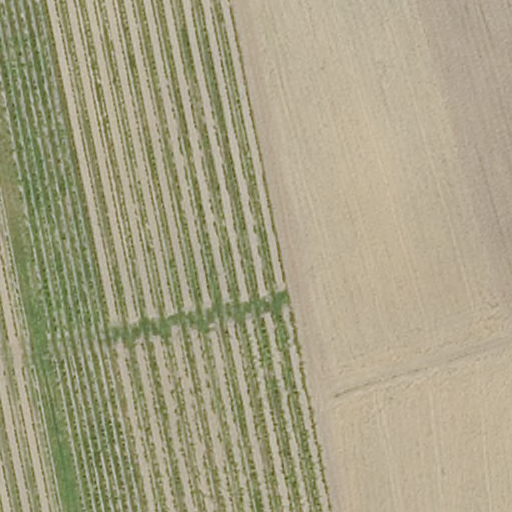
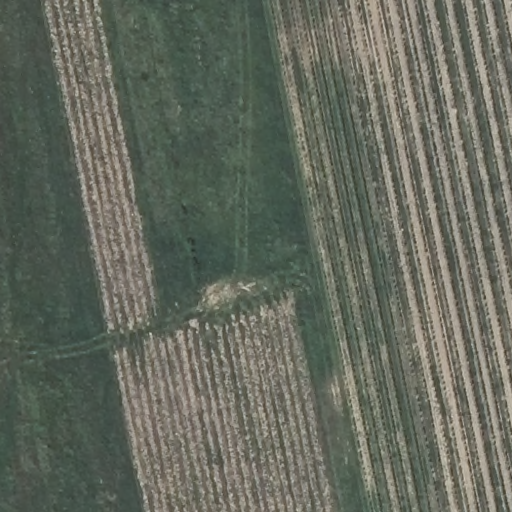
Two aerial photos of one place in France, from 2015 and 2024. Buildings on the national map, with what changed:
[]

